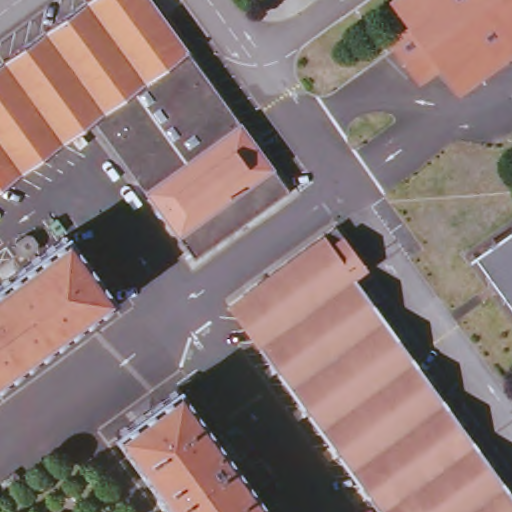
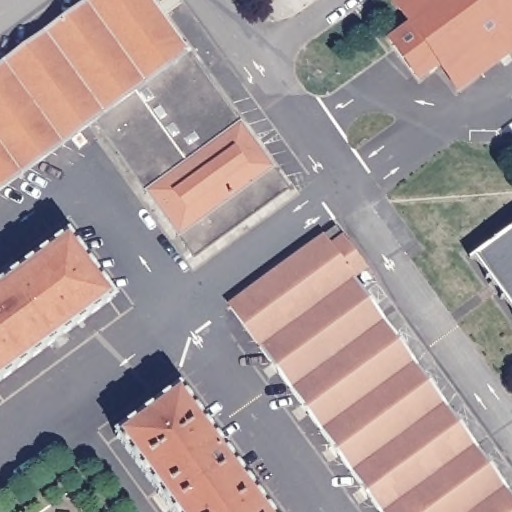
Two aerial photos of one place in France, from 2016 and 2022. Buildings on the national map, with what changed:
unchanged [(148,0),(285,186),(191,254),(95,125),(0,194),(0,67),(91,0),(148,0)]
unchanged [(512,0),(512,51),(456,92),(438,67),(417,82),(387,42),(407,27),(388,2),(391,0),(512,0)]
unchanged [(512,499),(512,512),(379,512),(228,306),(320,238),(335,227),(342,237),(360,262),(345,272),(512,499)]
unchanged [(512,306),(475,256),(512,229),(512,306)]
unchanged [(68,234),(113,295),(0,378),(0,284),(68,234)]
unchanged [(181,392),(270,512),(172,512),(118,438),(181,392)]

